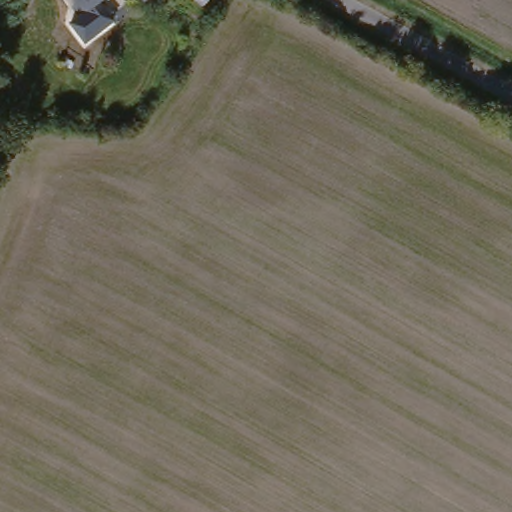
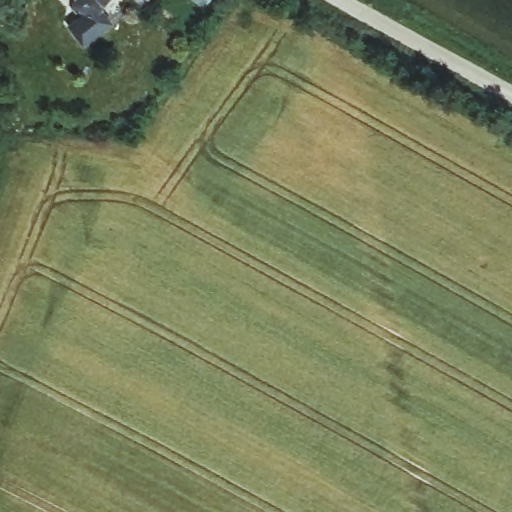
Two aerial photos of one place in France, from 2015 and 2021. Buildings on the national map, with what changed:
unchanged [(81,13),(70,0),(98,0),(81,13)]

